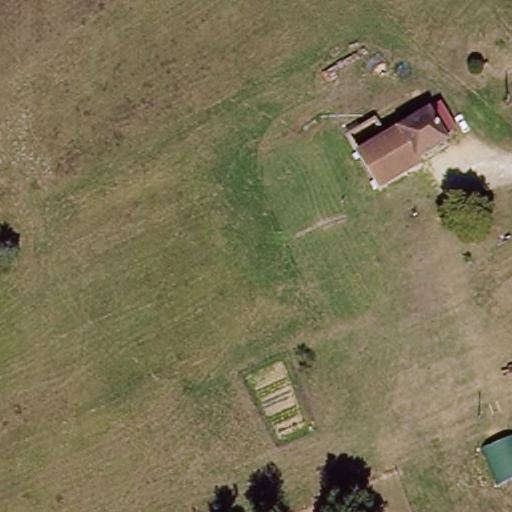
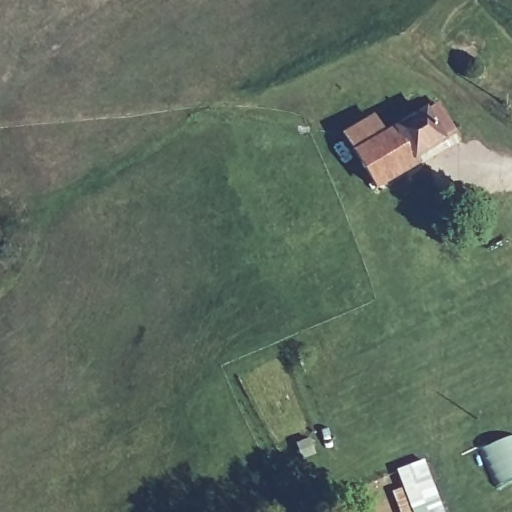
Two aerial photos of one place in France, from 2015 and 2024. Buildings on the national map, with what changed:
unchanged [(383,136),(425,114),(445,147),(375,191),(344,139),(374,122),(383,136)]
unchanged [(512,438),(512,480),(496,487),(482,452),(512,438)]
new [(396,472),(424,461),(444,512),(411,512),(396,472)]

